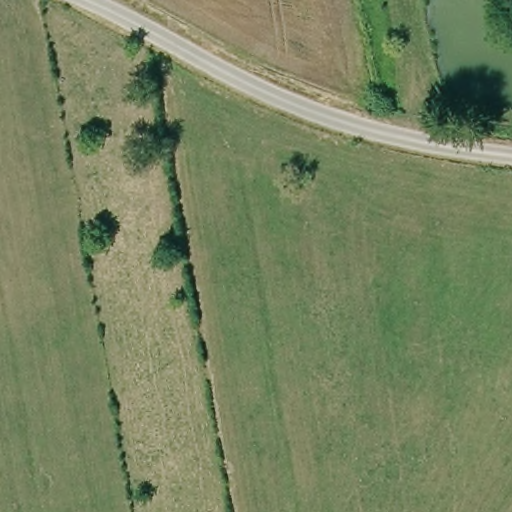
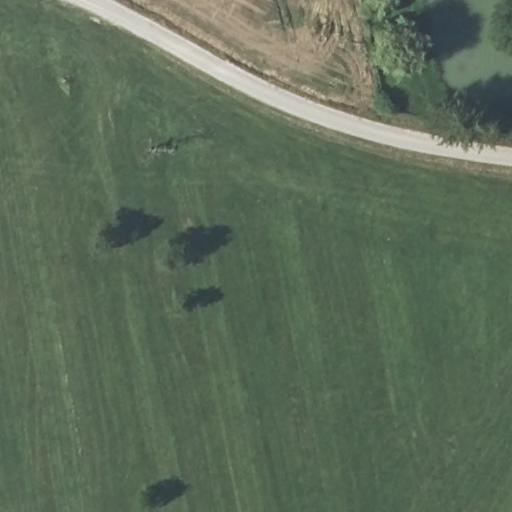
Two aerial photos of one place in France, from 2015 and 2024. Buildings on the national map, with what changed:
[]

